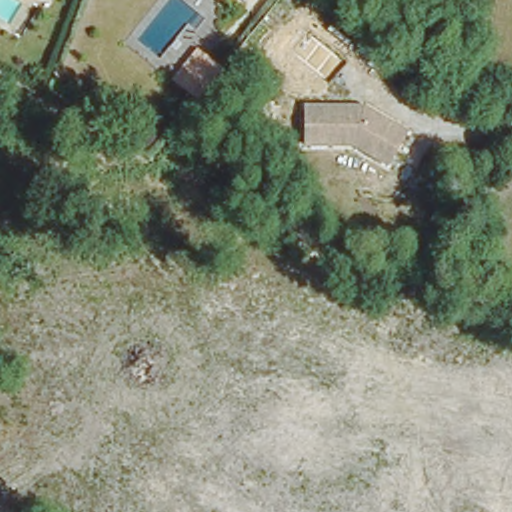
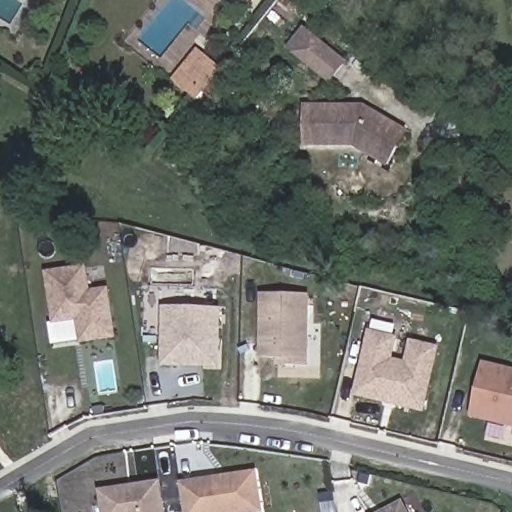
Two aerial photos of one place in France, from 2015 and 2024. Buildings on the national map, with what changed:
new [(307,31),(344,64),(328,82),(290,50),(307,31)]
unchanged [(239,85),(210,115),(170,80),(197,48),(239,85)]
unchanged [(407,133),(387,166),(355,146),(306,146),(306,108),(365,108),(407,133)]
new [(82,268),(86,293),(105,289),(112,336),(78,342),(75,319),(51,322),(44,274),(82,268)]
new [(276,359),(258,358),(260,295),(306,296),(305,366),(282,366),(276,366),(276,359)]
new [(160,366),(162,309),(217,310),(216,366),(177,366),(168,366),(160,366)]
new [(424,414),(354,396),(369,330),(400,337),(394,359),(405,362),(410,340),(440,347),(424,414)]
new [(483,361),(512,368),(512,428),(470,418),(483,361)]
new [(180,482),(257,470),(261,512),(184,512),(180,482)]
new [(165,512),(102,512),(99,490),(160,481),(165,512)]
new [(409,512),(379,512),(403,500),(409,512)]

